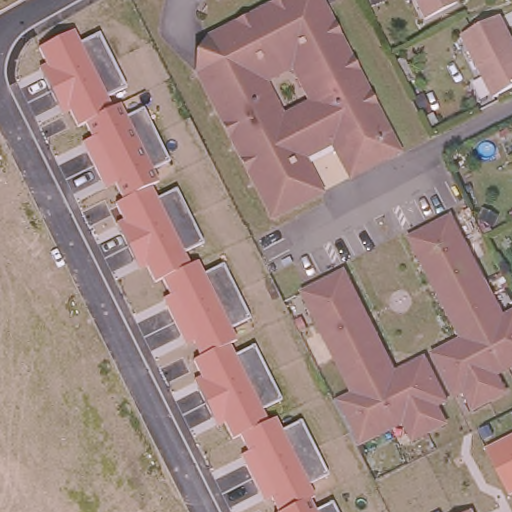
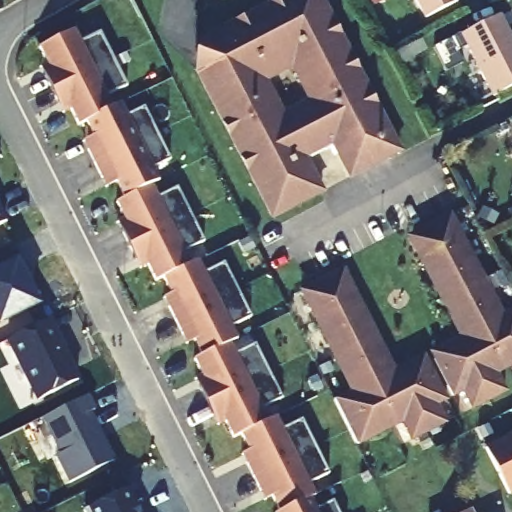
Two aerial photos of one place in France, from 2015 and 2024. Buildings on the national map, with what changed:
unchanged [(205,35),(272,0),(319,0),(397,151),(350,175),(331,142),(302,156),(318,191),(271,217),(193,68),(205,35)]
unchanged [(433,0),(459,0),(438,10),(433,0)]
unchanged [(502,12),(512,34),(512,84),(496,92),(464,29),(502,12)]
unchanged [(233,433),(223,438),(187,363),(193,358),(148,266),(134,271),(111,227),(120,221),(112,201),(122,194),(114,179),(97,186),(76,141),(89,133),(81,117),(73,121),(67,109),(59,113),(38,66),(45,63),(38,46),(70,31),(75,40),(97,31),(123,85),(107,93),(120,116),(140,106),(167,161),(147,172),(157,193),(175,186),(202,239),(182,249),(187,258),(197,255),(205,272),(224,263),(248,317),(231,325),(242,347),(252,343),(278,394),(260,404),(267,416),(275,413),(282,428),(300,420),(325,474),(304,484),(317,509),(332,501),(338,512),(273,512),(233,433)]
new [(0,226),(0,201),(10,220),(0,226)]
unchanged [(497,374),(506,392),(505,392),(475,408),(466,390),(455,396),(433,353),(463,338),(412,236),(453,215),(500,308),(504,316),(512,312),(512,367),(497,374)]
new [(0,250),(15,242),(28,268),(23,270),(40,303),(2,323),(0,319),(0,250)]
unchanged [(335,401),(352,392),(304,290),(348,269),(398,371),(427,357),(447,399),(437,404),(446,422),(415,438),(403,421),(400,423),(357,444),(335,401)]
new [(68,352),(65,354),(69,362),(70,361),(80,381),(41,400),(11,340),(52,320),(68,352)]
new [(88,395),(95,408),(90,411),(115,460),(67,483),(55,457),(60,455),(42,418),(88,395)]
unchanged [(512,431),(512,489),(503,493),(480,446),(512,431)]
new [(85,509),(132,487),(143,512),(86,512),(85,509)]
unchanged [(472,508),(473,512),(462,512),(472,508)]

